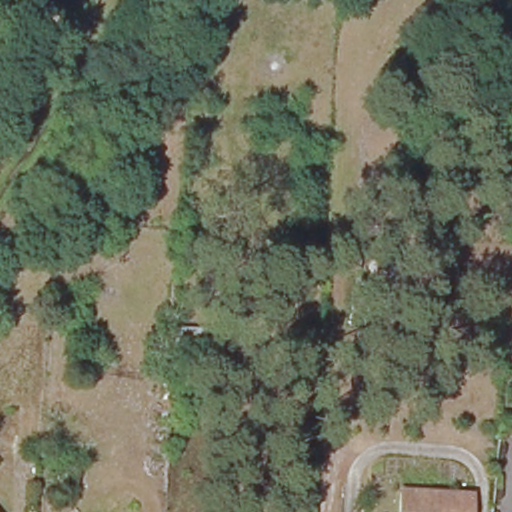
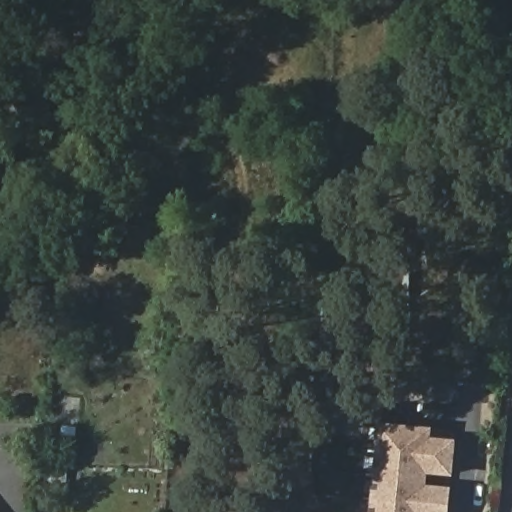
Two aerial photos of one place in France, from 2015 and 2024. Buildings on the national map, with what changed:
new [(428,441),(453,443),(450,473),(425,471),(424,488),(449,491),(446,512),(373,512),(381,426),(429,431),(428,441)]
demolished [(470,495),(469,512),(435,512),(436,494),(470,495)]

